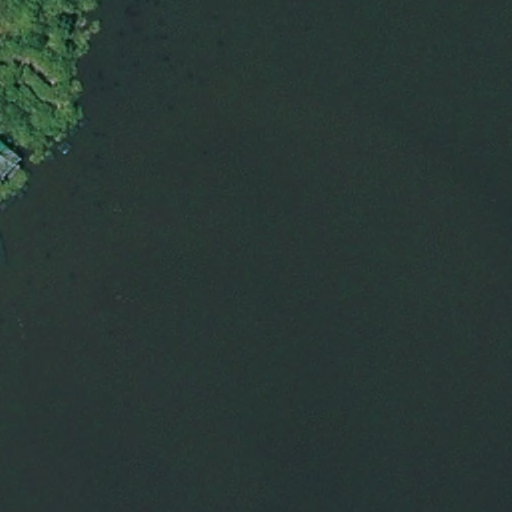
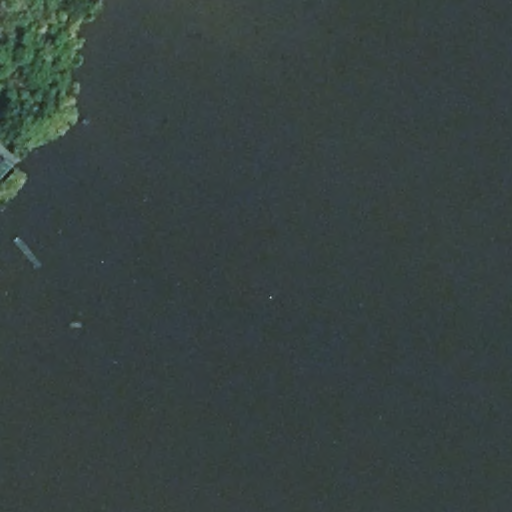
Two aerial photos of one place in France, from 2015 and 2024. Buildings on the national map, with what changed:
[]

